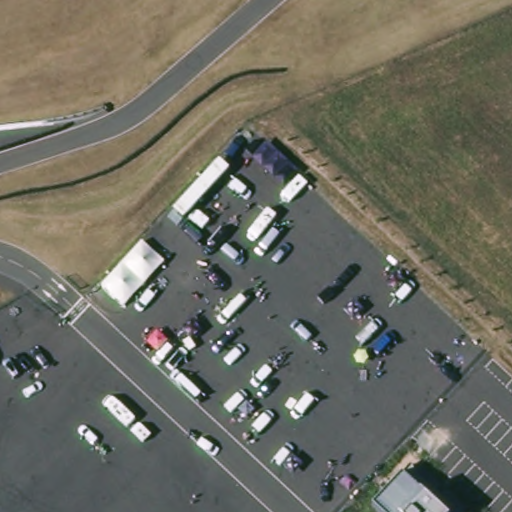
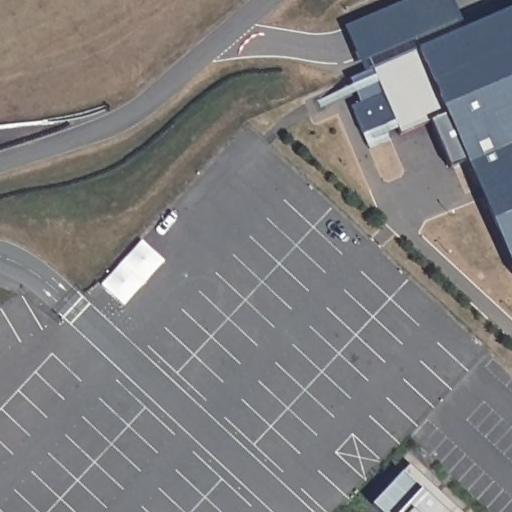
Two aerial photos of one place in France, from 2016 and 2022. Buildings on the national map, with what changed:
new [(403,0),(454,0),(465,27),(365,70),(346,24),(403,0)]
new [(365,70),(465,27),(512,7),(512,279),(507,281),(457,162),(441,170),(421,122),(391,137),(385,122),(355,135),(342,106),(360,100),(350,77),(357,73),(365,70)]
unchanged [(403,473),(410,465),(460,512),(378,512),(372,505),(403,473)]

